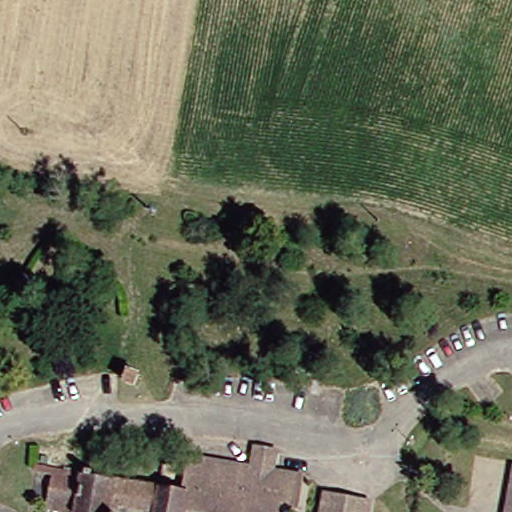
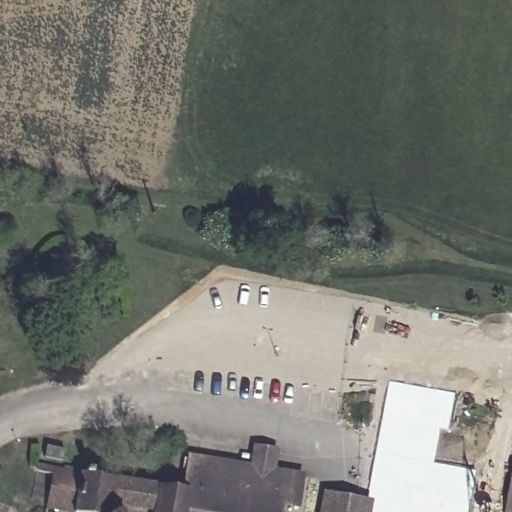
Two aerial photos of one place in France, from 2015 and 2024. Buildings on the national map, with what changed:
new [(441,428),(435,462),(475,470),(468,512),(368,512),(371,495),(368,494),(389,380),(456,393),(450,429),(441,428)]
unchanged [(59,458),(61,446),(74,448),(72,460),(104,466),(187,481),(189,449),(252,458),(253,440),(278,445),(275,463),(306,469),(298,503),(291,502),(289,512),(74,512),(75,503),(67,501),(67,506),(59,505),(57,512),(41,512),(47,467),(31,465),(33,455),(59,458)]
unchanged [(505,512),(512,472),(512,512),(505,512)]
unchanged [(371,495),(368,512),(318,512),(324,484),(371,495)]

